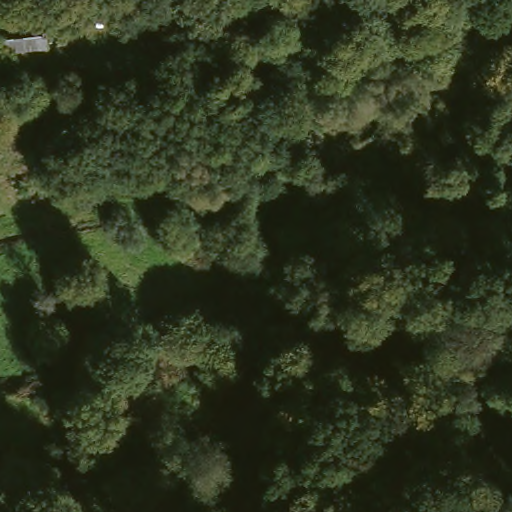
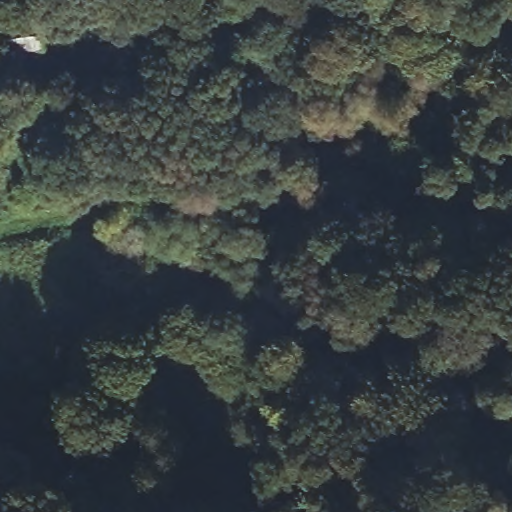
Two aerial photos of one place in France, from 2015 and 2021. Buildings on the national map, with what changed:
unchanged [(45,49),(0,55),(0,23),(42,18),(45,49)]

